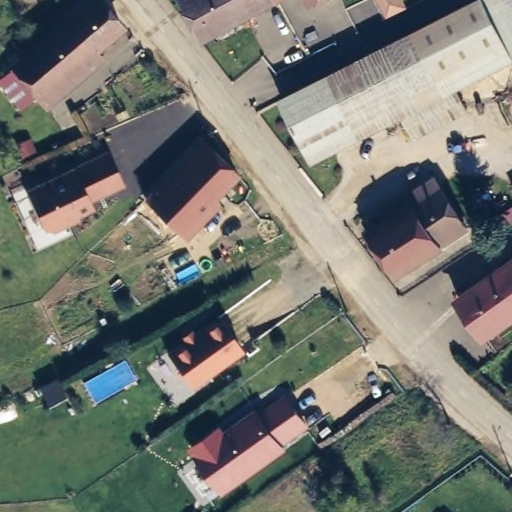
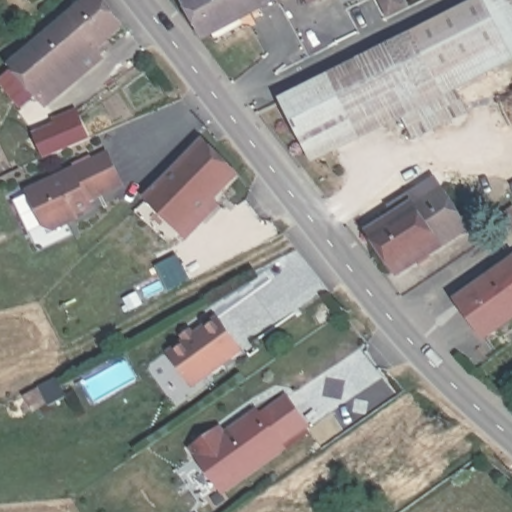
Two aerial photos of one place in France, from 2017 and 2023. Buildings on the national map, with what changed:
unchanged [(205,31),(188,0),(263,0),(205,31)]
unchanged [(255,111),(280,96),(470,0),(512,0),(512,60),(457,88),(470,110),(412,138),(403,117),(312,162),(310,158),(299,166),(255,111)]
unchanged [(98,4),(124,36),(42,106),(15,70),(98,4)]
unchanged [(164,78),(159,81),(155,75),(160,72),(164,78)]
unchanged [(204,135),(235,166),(167,235),(137,202),(204,135)]
unchanged [(125,185),(91,203),(95,211),(47,234),(23,187),(107,152),(125,185)]
unchanged [(390,208),(418,193),(438,181),(443,189),(469,233),(395,277),(367,234),(395,217),(390,208)]
unchanged [(486,332),(463,298),(512,265),(512,315),(486,332)]
unchanged [(168,350),(218,314),(242,348),(192,384),(168,350)]
unchanged [(310,426),(288,442),(290,446),(222,493),(190,446),(223,424),(227,428),(260,408),(263,411),(287,394),(310,426)]

